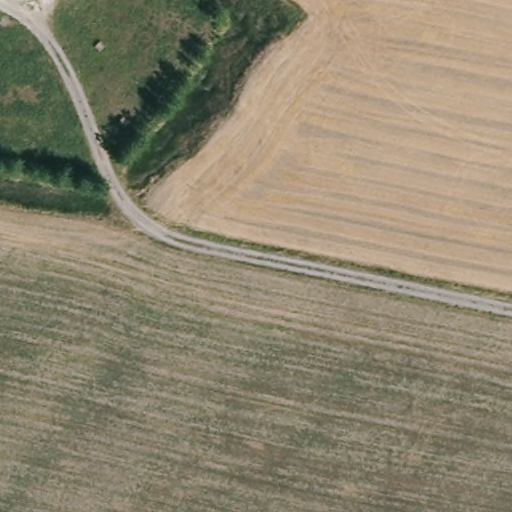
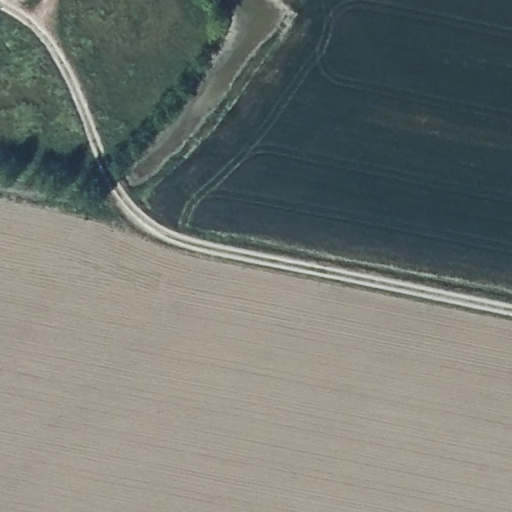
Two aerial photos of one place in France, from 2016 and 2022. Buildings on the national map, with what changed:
unchanged [(27,1),(24,0),(28,0),(27,1)]

